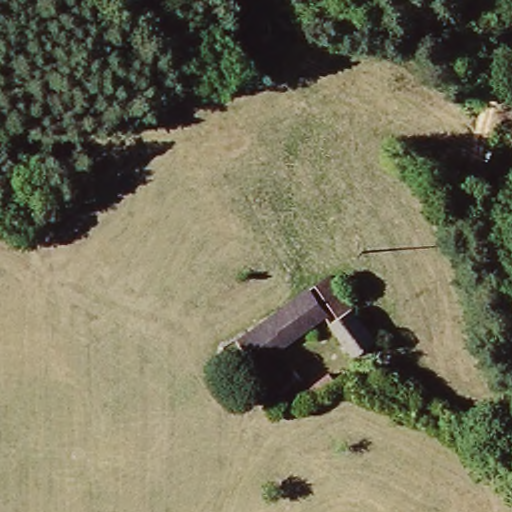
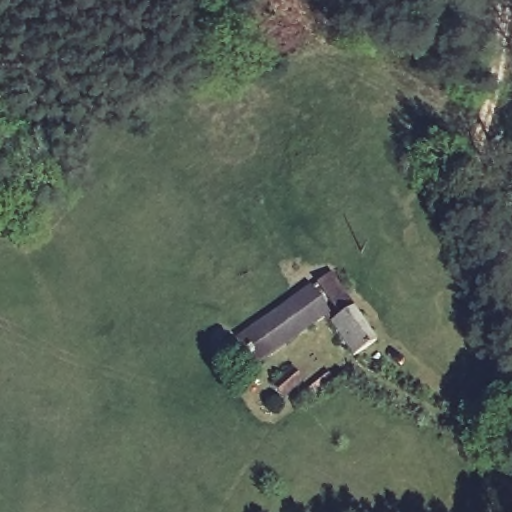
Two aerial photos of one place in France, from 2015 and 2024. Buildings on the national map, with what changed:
unchanged [(381,336),(357,354),(325,311),(260,360),(243,336),(334,270),(381,336)]
unchanged [(277,402),(268,392),(297,368),(305,378),(277,402)]
unchanged [(331,372),(340,382),(317,399),(308,387),(331,372)]

